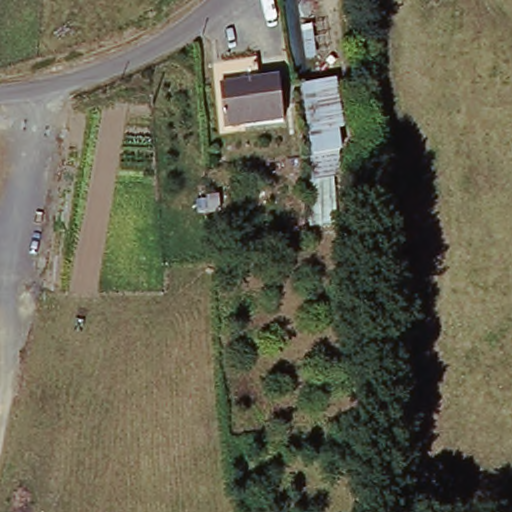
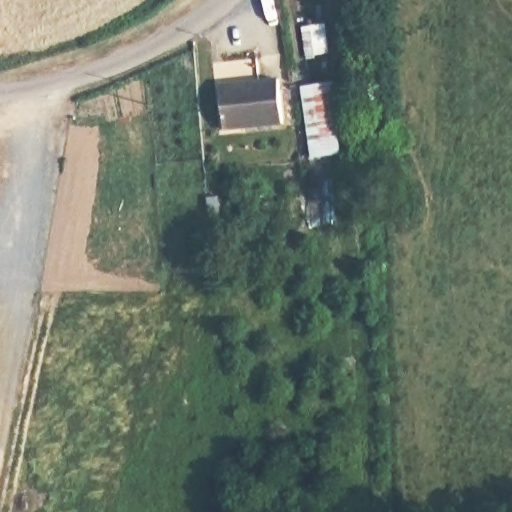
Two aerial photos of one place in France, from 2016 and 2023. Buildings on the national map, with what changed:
unchanged [(329,178),(315,180),(315,157),(317,157),(308,86),(339,84),(347,132),(342,135),(345,156),(336,157),(338,177),(329,178)]
unchanged [(285,85),(288,127),(227,132),(223,90),(285,85)]

